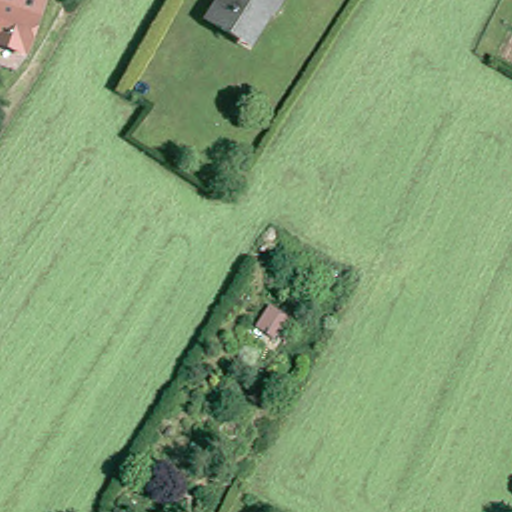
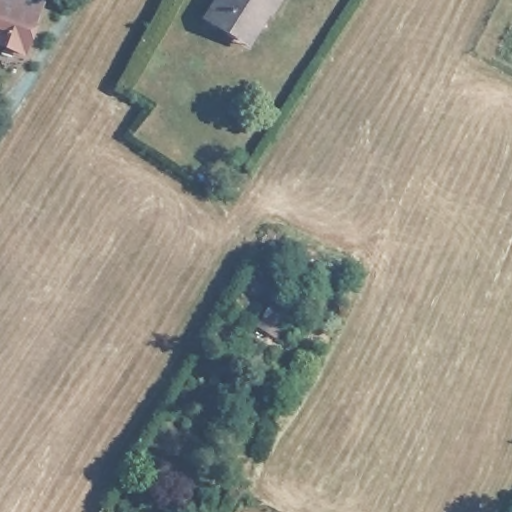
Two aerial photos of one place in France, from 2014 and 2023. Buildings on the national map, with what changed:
unchanged [(1,0),(40,14),(27,50),(0,40),(0,0),(1,0)]
unchanged [(45,0),(40,14),(1,0),(45,0)]
unchanged [(225,0),(288,0),(272,26),(261,19),(241,50),(207,29),(225,0)]
unchanged [(291,318),(281,336),(261,324),(271,307),(291,318)]

